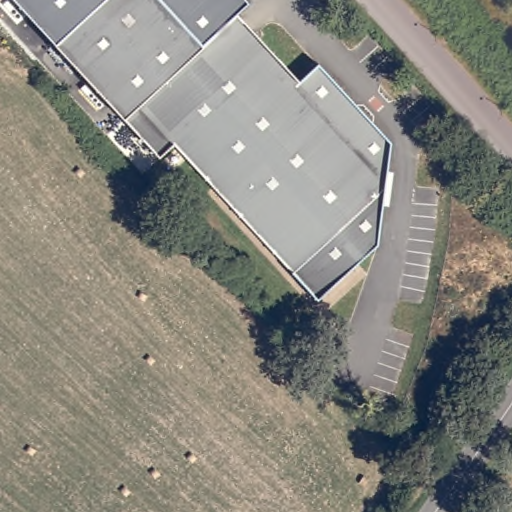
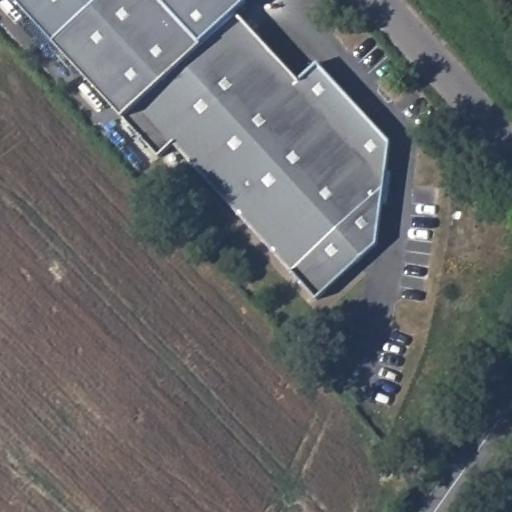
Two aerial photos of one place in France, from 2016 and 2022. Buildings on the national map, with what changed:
unchanged [(14,0),(104,0),(53,45),(14,0)]
unchanged [(392,143),(376,250),(316,302),(174,146),(160,159),(122,119),(53,45),(104,0),(180,0),(166,11),(200,47),(237,15),(299,83),(317,66),(392,143)]
unchanged [(245,2),(236,11),(237,15),(200,47),(166,11),(180,0),(243,0),(245,2)]

